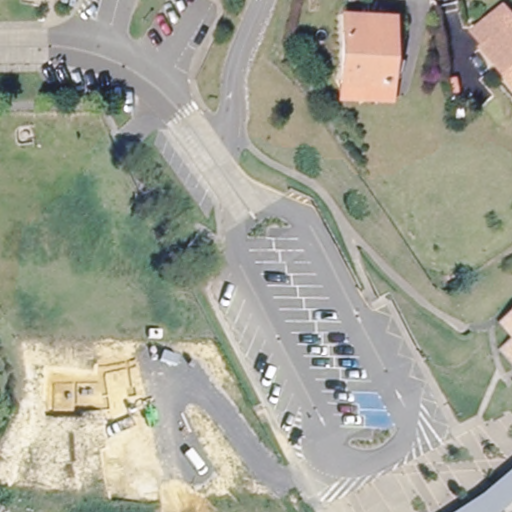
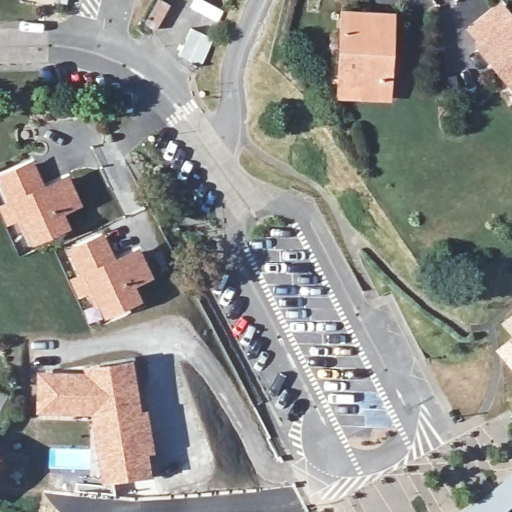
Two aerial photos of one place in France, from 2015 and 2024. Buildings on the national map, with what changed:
unchanged [(336,84),(340,69),(351,4),(397,12),(391,43),(390,55),(385,78),(382,93),(336,84)]
unchanged [(477,50),(468,38),(498,12),(512,29),(512,97),(475,53),(477,50)]
new [(0,184),(0,180),(30,167),(36,184),(33,185),(37,194),(65,182),(75,206),(56,214),(62,229),(31,243),(20,218),(7,224),(1,211),(10,207),(0,184)]
new [(70,255),(100,241),(108,257),(104,259),(109,268),(135,255),(146,279),(128,287),(135,302),(104,316),(92,292),(79,298),(73,285),(81,281),(70,255)]
unchanged [(512,330),(505,322),(512,315),(512,330)]
new [(512,334),(512,371),(494,350),(512,334)]
new [(74,413),(50,413),(38,412),(39,395),(39,380),(50,381),(55,381),(100,381),(99,373),(126,369),(125,362),(132,360),(137,394),(152,481),(144,482),(143,475),(109,481),(104,482),(92,413),(74,413)]
unchanged [(512,472),(512,506),(505,512),(459,512),(485,495),(512,472)]

